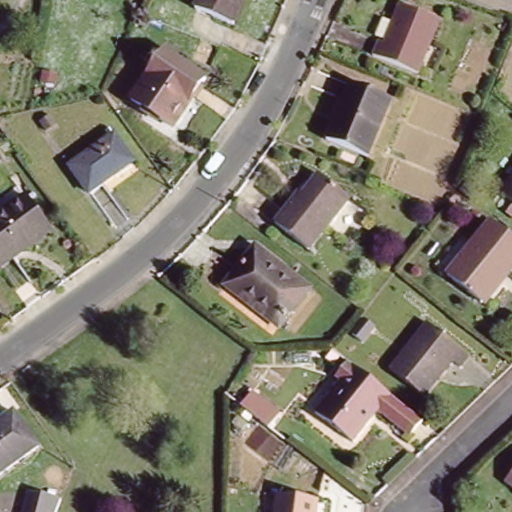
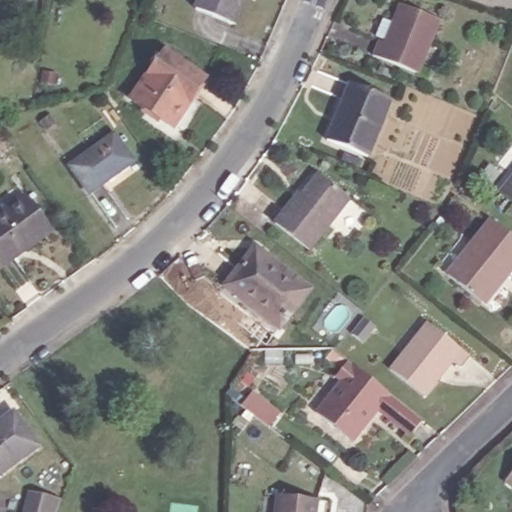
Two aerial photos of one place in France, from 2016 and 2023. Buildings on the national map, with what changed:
unchanged [(198,0),(241,0),(233,20),(196,4),(198,0)]
unchanged [(382,35),(387,37),(388,34),(379,30),(384,15),(394,19),(402,0),(411,0),(443,13),(422,67),(377,49),(382,35)]
unchanged [(166,49),(208,75),(176,124),(134,98),(166,49)]
unchanged [(349,82),(391,100),(368,154),(326,136),(349,82)]
unchanged [(119,134),(139,162),(94,194),(75,166),(119,134)]
unchanged [(512,172),(512,191),(503,183),(512,172)]
unchanged [(294,200),(297,203),(319,174),(350,196),(311,248),(276,222),(294,200)]
unchanged [(55,230),(3,267),(0,262),(0,216),(30,195),(55,230)]
unchanged [(511,202),(512,201),(512,203),(511,202)]
unchanged [(494,221),(512,236),(512,274),(508,279),(504,276),(481,303),(448,275),(494,221)]
unchanged [(258,249),(312,291),(282,328),(228,287),(258,249)]
unchanged [(430,316),(471,351),(462,361),(454,355),(424,390),(391,362),(430,316)]
unchanged [(356,440),(319,408),(345,377),(339,373),(353,358),(424,420),(412,434),(383,409),(376,417),(356,440)]
unchanged [(43,451),(1,480),(0,478),(0,428),(18,416),(43,451)]
unchanged [(509,475),(512,471),(512,478),(509,475)]
unchanged [(59,502),(55,512),(22,512),(27,493),(59,502)]
unchanged [(319,498),(318,512),(276,512),(278,495),(319,498)]

